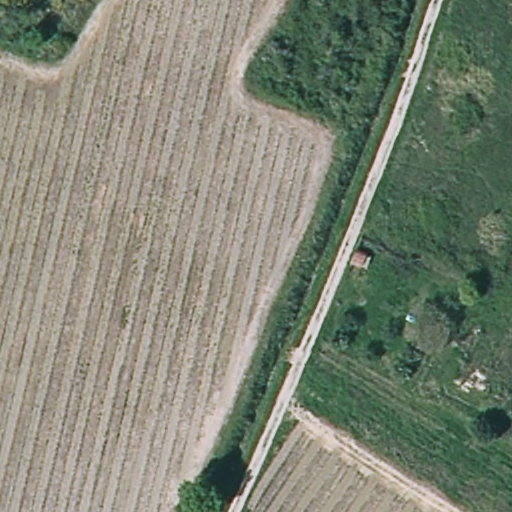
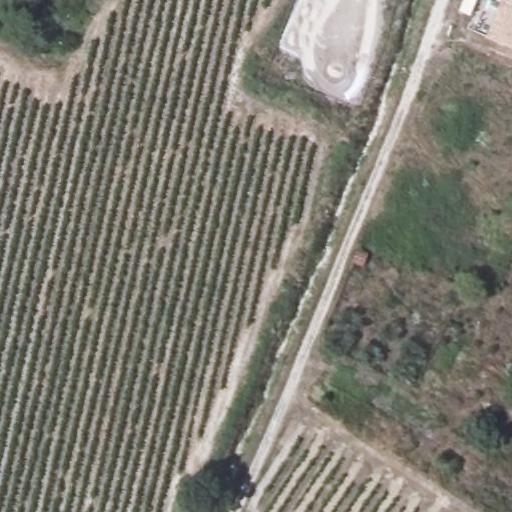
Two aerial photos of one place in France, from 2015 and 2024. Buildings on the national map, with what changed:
new [(498,0),(504,0),(512,4),(512,44),(485,32),(498,0)]
new [(504,0),(512,0),(512,4),(504,0)]

